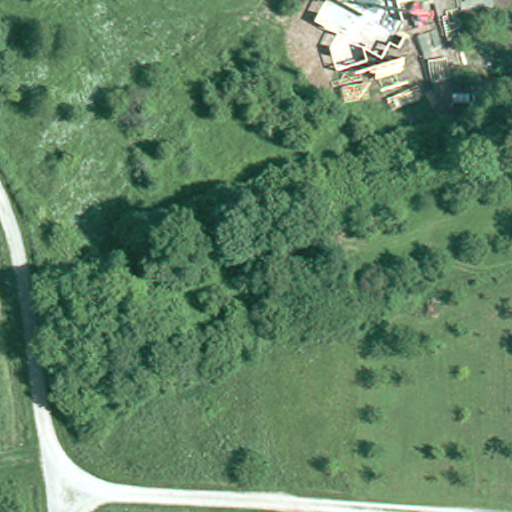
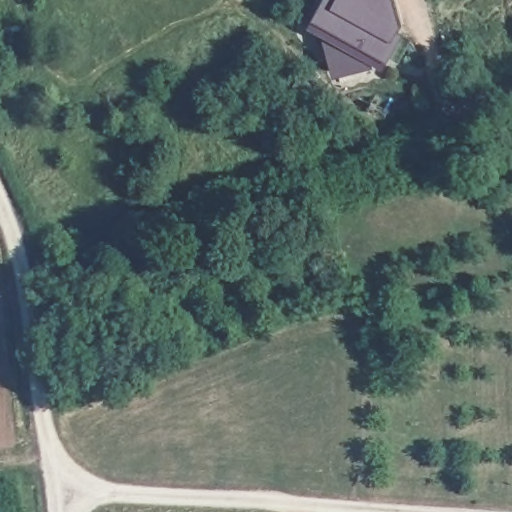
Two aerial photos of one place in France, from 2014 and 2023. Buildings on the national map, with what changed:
new [(405,30),(385,67),(377,63),(331,76),(321,32),(309,26),(322,0),(396,0),(405,30)]

